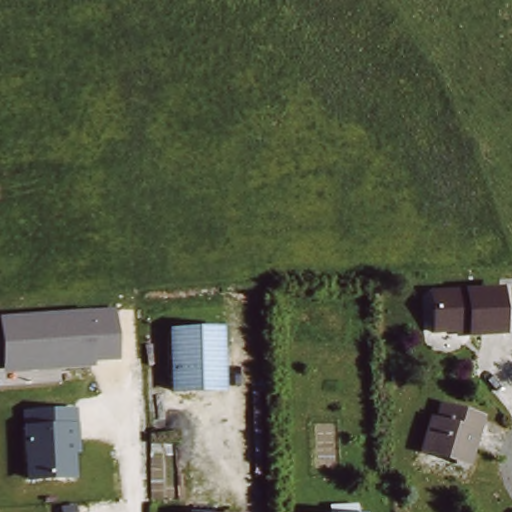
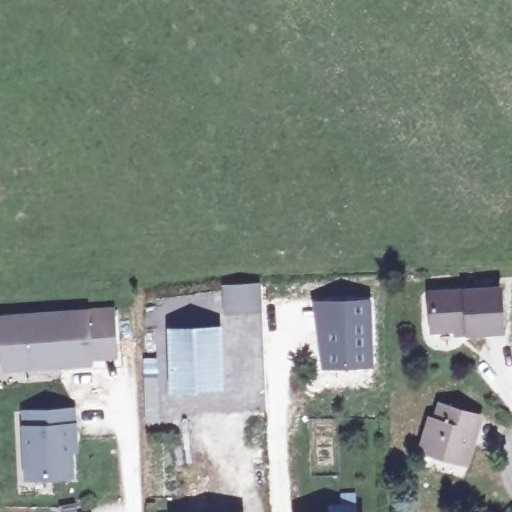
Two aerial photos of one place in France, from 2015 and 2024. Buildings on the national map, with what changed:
unchanged [(268,286),(270,311),(258,312),(257,307),(235,307),(234,288),(268,286)]
unchanged [(502,335),(469,337),(468,332),(433,333),(431,297),(500,292),(502,335)]
new [(372,297),(375,366),(320,368),(313,299),(372,297)]
unchanged [(118,360),(93,362),(93,367),(3,373),(0,342),(0,316),(113,309),(118,360)]
unchanged [(227,387),(176,388),(175,327),(225,326),(227,387)]
unchanged [(467,460),(422,447),(430,418),(439,420),(443,405),(480,416),(467,460)]
unchanged [(25,481),(20,413),(75,409),(78,453),(73,454),(75,479),(25,481)]

